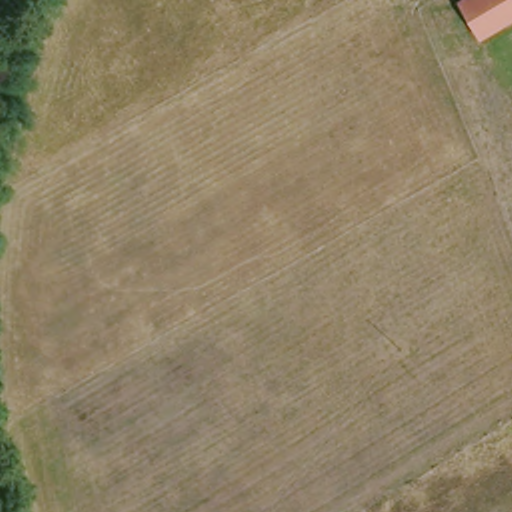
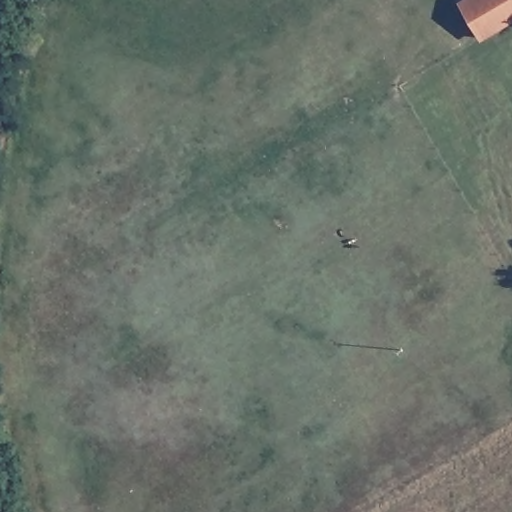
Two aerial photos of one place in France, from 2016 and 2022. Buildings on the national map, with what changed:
unchanged [(512,0),(512,10),(484,25),(474,30),(459,0),(512,0)]

